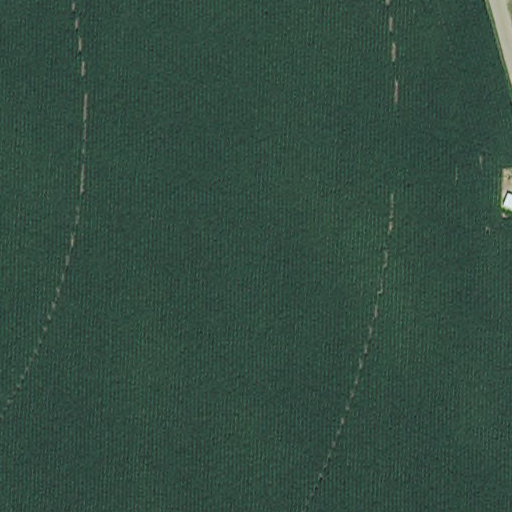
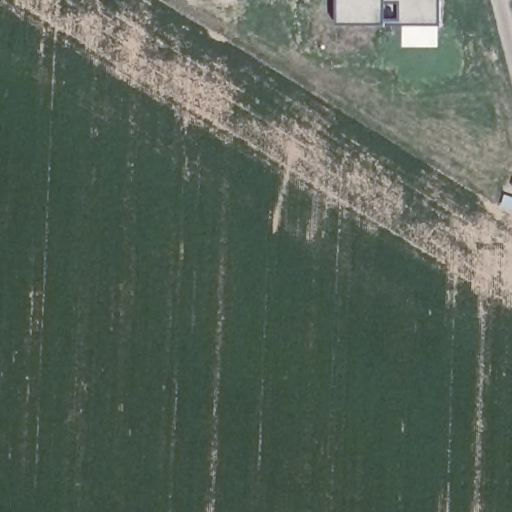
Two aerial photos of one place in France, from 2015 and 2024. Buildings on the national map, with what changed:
new [(438,26),(398,26),(397,4),(381,3),(380,20),(334,21),(333,0),(437,0),(438,26)]

